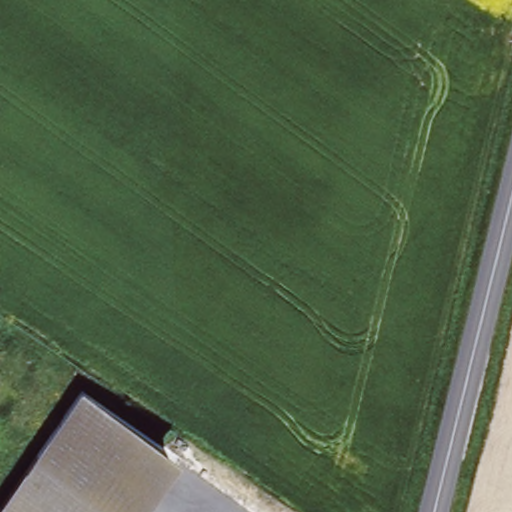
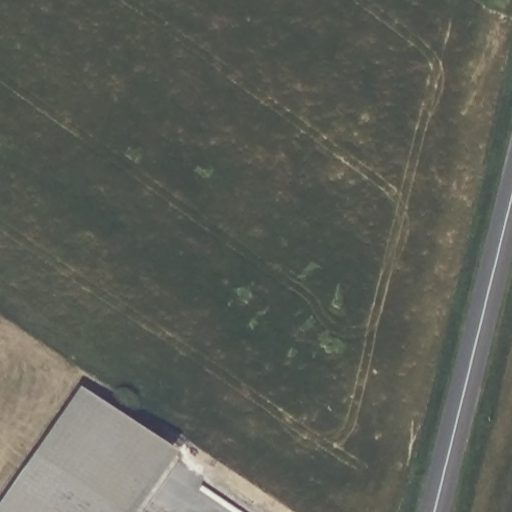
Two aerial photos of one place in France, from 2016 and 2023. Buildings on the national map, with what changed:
unchanged [(178,454),(141,512),(128,512),(35,455),(80,390),(178,454)]
unchanged [(1,512),(35,455),(128,512),(1,512)]

